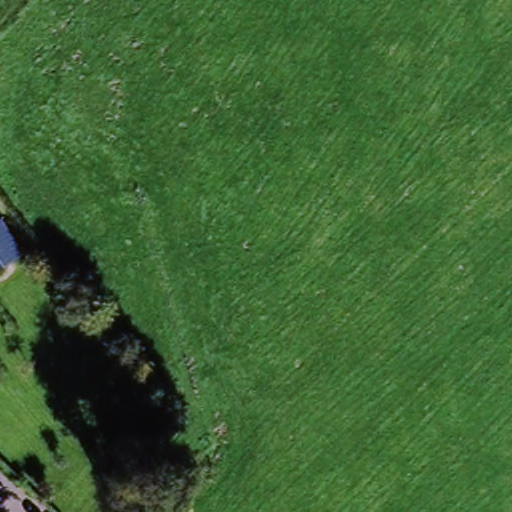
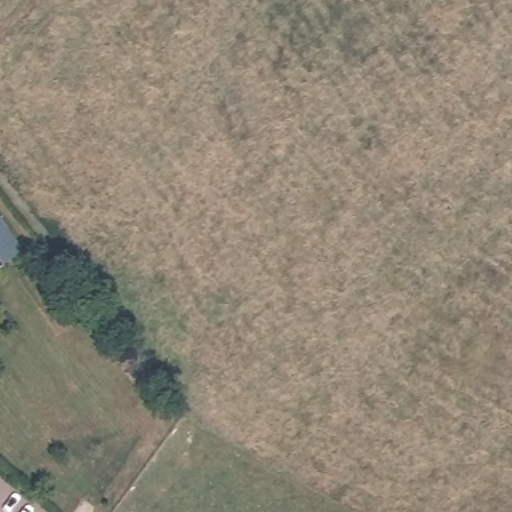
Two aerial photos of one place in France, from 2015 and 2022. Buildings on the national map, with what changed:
unchanged [(0,271),(0,255),(8,265),(0,271)]

